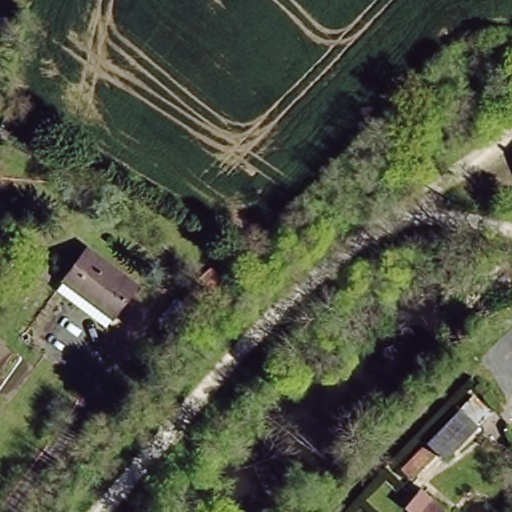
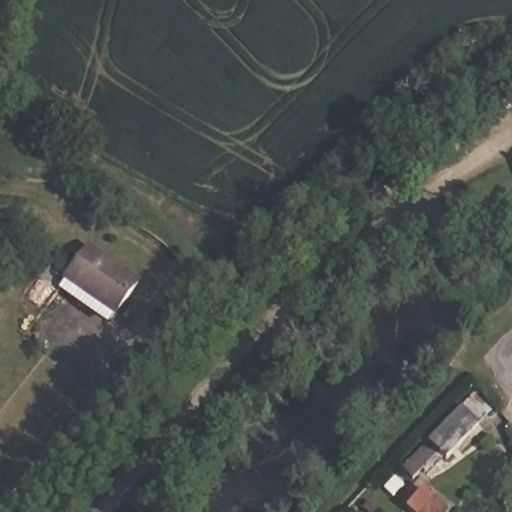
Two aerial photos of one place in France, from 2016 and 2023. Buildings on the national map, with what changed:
unchanged [(87,312),(93,303),(62,282),(92,242),(140,282),(109,327),(87,312)]
unchanged [(405,461),(475,391),(492,404),(420,477),(405,461)]
unchanged [(397,507),(423,482),(450,508),(446,512),(404,512),(397,507)]

